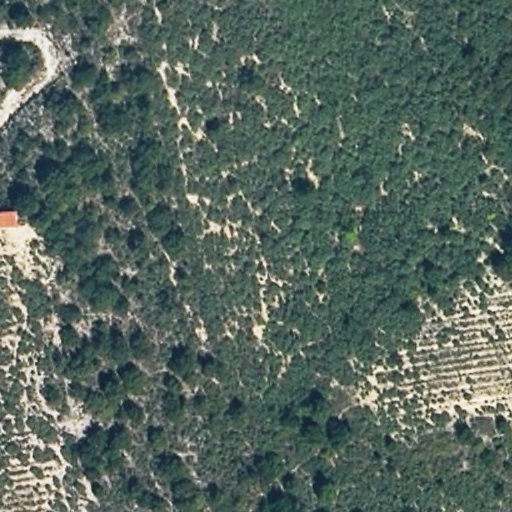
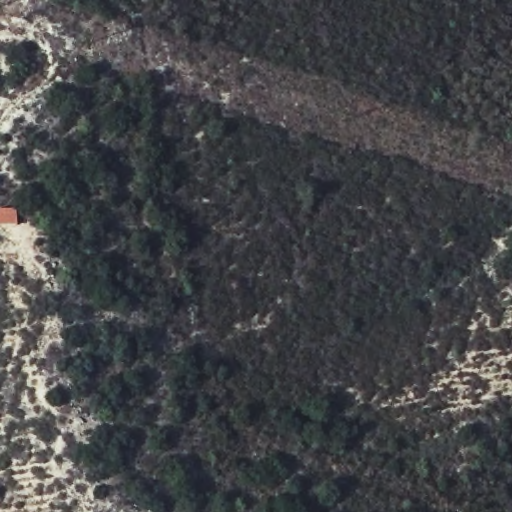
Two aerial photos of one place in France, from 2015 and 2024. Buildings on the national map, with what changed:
unchanged [(0,219),(0,206),(24,205),(26,223),(2,227),(0,219)]

